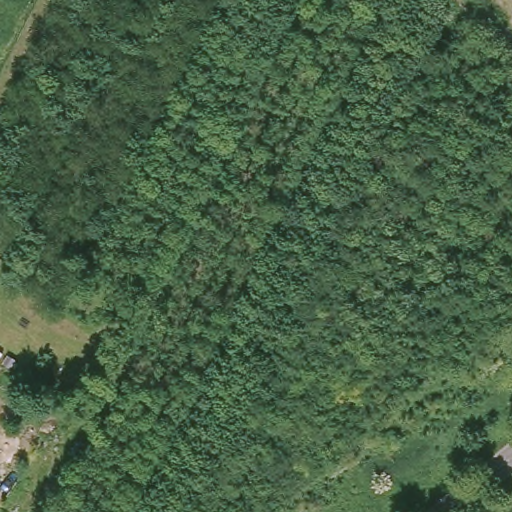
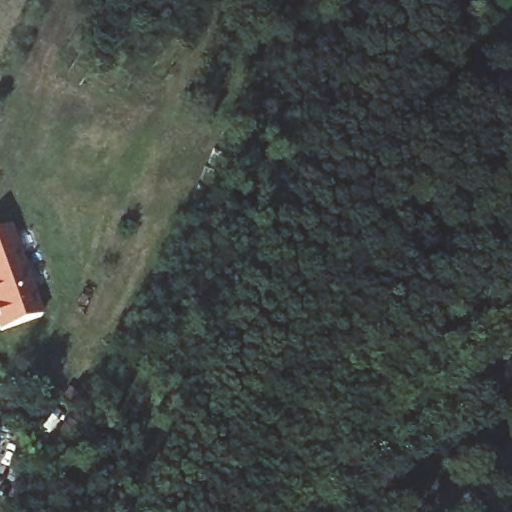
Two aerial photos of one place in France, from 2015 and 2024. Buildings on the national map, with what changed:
new [(0,331),(0,230),(11,226),(44,315),(0,331)]

